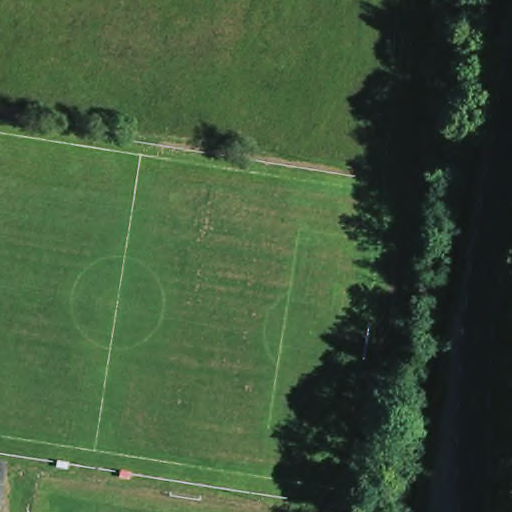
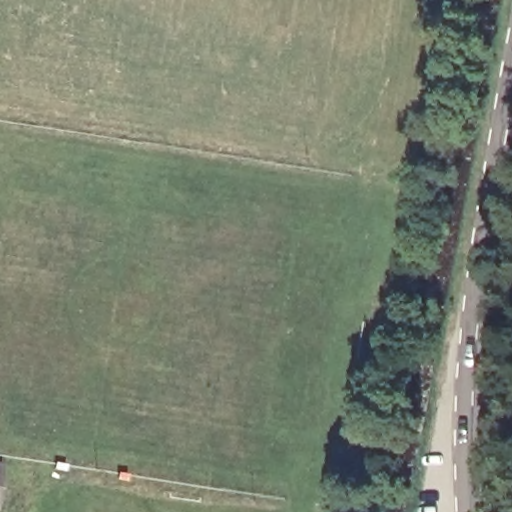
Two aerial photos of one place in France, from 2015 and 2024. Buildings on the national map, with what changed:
unchanged [(0,472),(1,472),(0,484),(0,472)]

